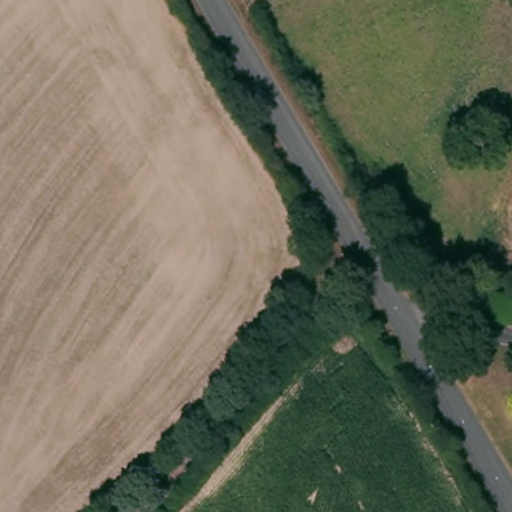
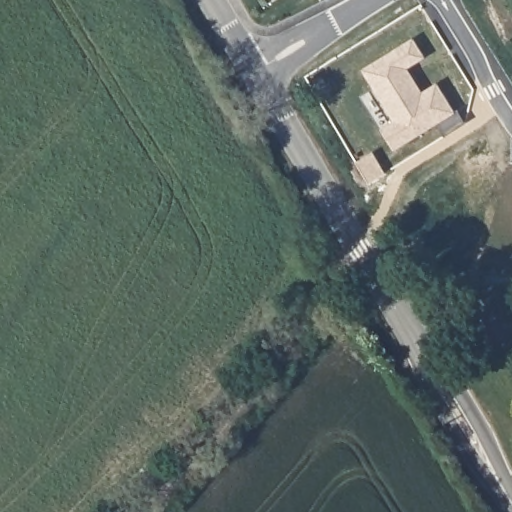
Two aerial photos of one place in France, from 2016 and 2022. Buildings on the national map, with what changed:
new [(425,58),(410,68),(423,91),(437,83),(465,123),(445,136),(438,125),(395,152),(380,128),(393,121),(362,70),(413,37),(425,58)]

